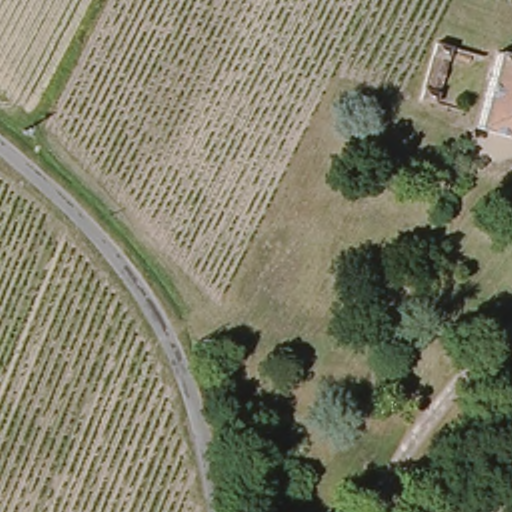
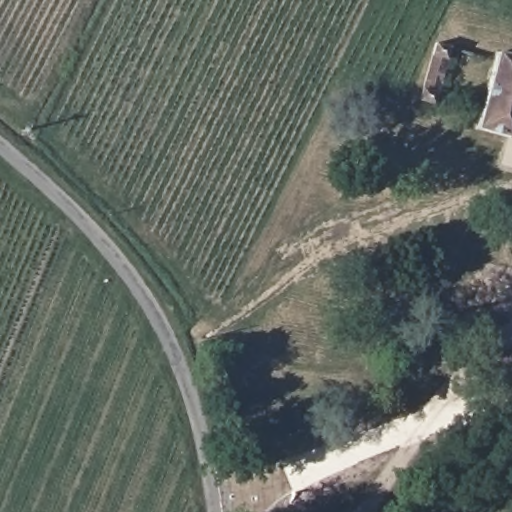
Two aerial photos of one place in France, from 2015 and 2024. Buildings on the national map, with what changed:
unchanged [(420,107),(434,50),(447,52),(435,110),(420,107)]
unchanged [(507,137),(476,129),(500,53),(512,56),(512,130),(510,129),(507,137)]

